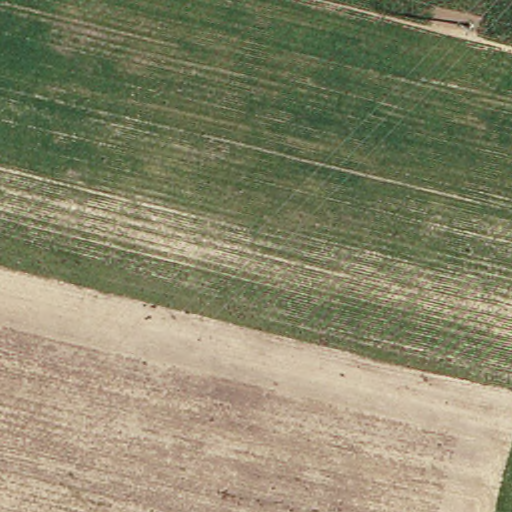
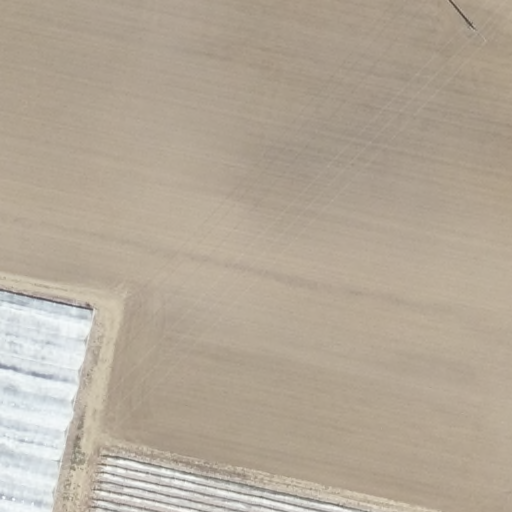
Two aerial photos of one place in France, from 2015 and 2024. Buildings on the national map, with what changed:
new [(0,512),(0,292),(94,312),(51,512),(0,512)]

